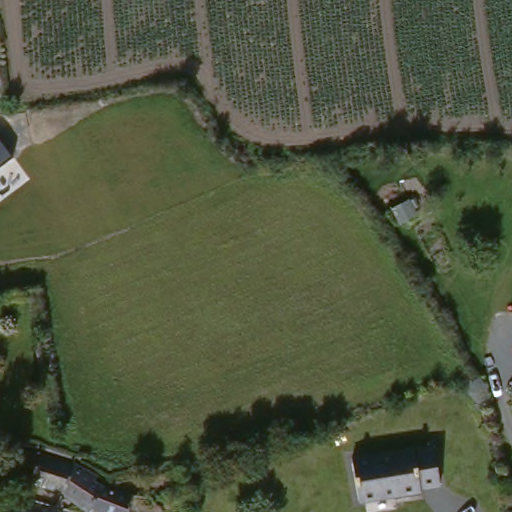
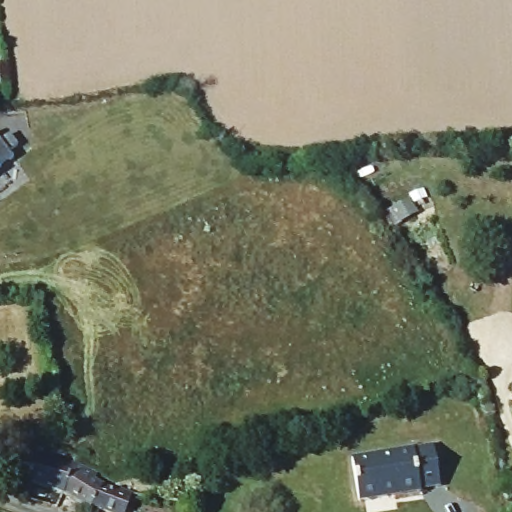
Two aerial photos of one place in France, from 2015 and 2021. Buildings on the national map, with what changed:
unchanged [(14,156),(0,166),(0,138),(14,156)]
unchanged [(512,388),(509,384),(512,383),(512,388)]
unchanged [(354,455),(431,437),(441,480),(364,498),(354,455)]
unchanged [(63,458),(54,485),(21,473),(25,461),(0,452),(0,440),(64,454),(63,458)]
unchanged [(85,461),(88,463),(86,469),(111,477),(112,474),(126,479),(118,504),(88,494),(84,500),(54,487),(54,485),(63,458),(64,454),(85,461)]
unchanged [(8,477),(22,483),(17,494),(3,488),(8,477)]

